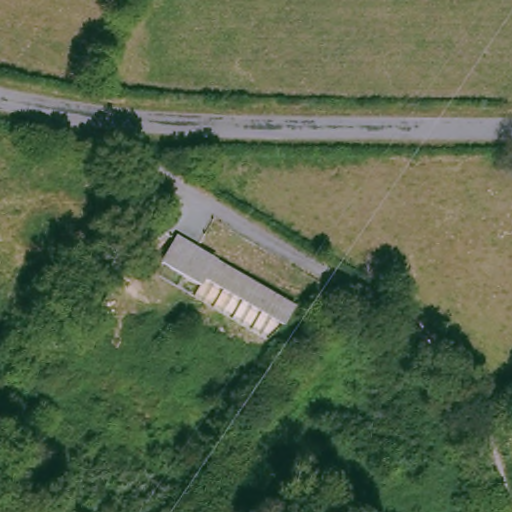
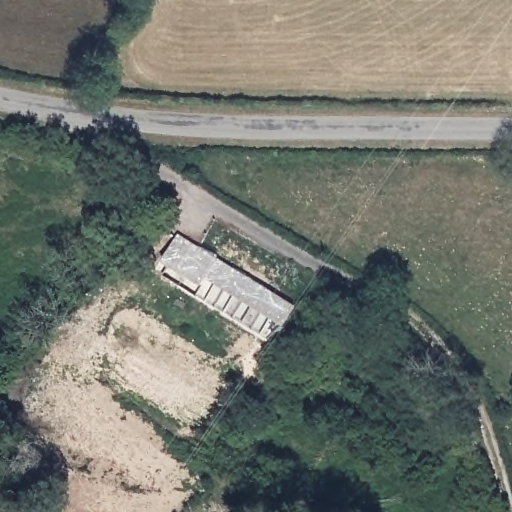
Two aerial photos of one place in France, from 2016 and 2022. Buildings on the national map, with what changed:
unchanged [(300,302),(287,325),(168,263),(181,239),(300,302)]

